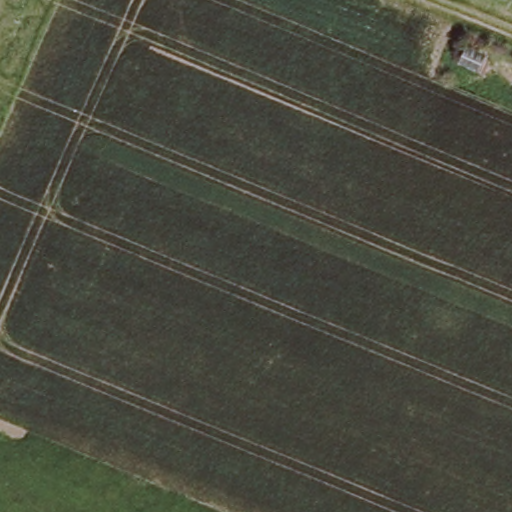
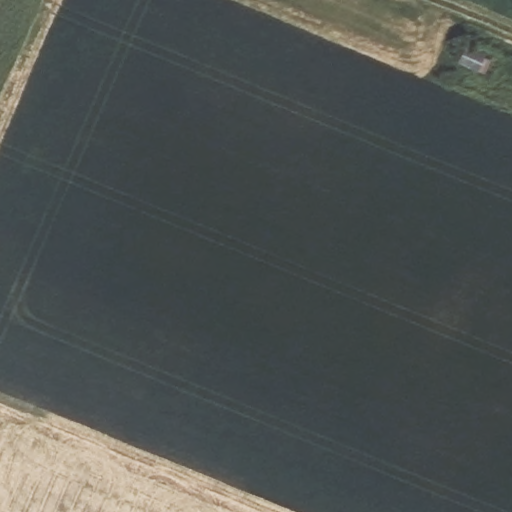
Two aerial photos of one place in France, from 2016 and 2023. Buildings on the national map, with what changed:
unchanged [(464,56),(471,43),(492,52),(485,63),(464,56)]

